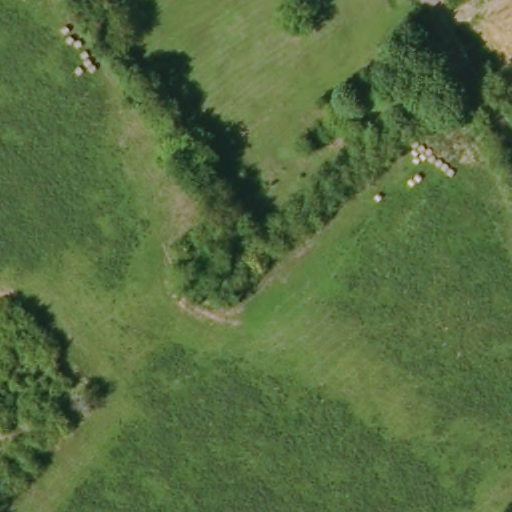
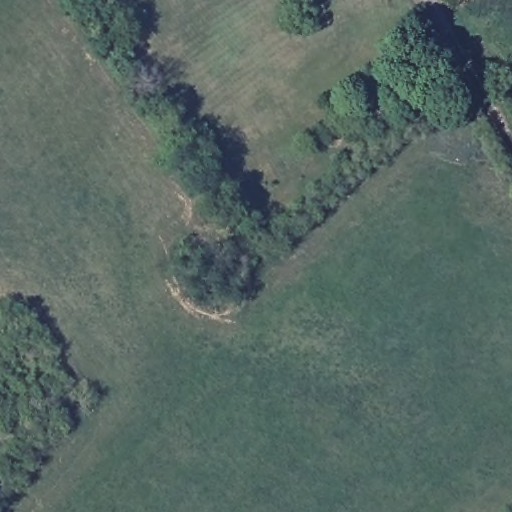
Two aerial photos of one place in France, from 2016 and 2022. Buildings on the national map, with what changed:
[]

